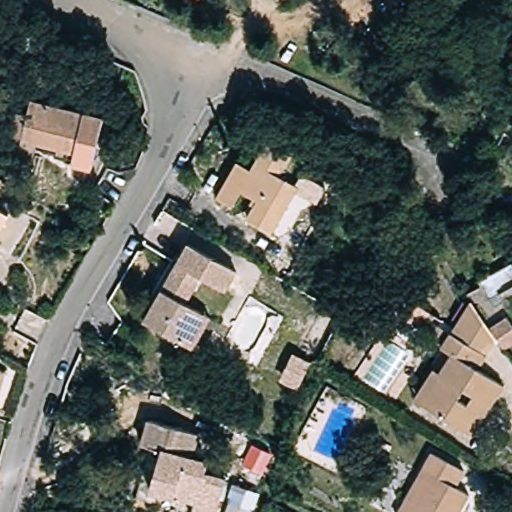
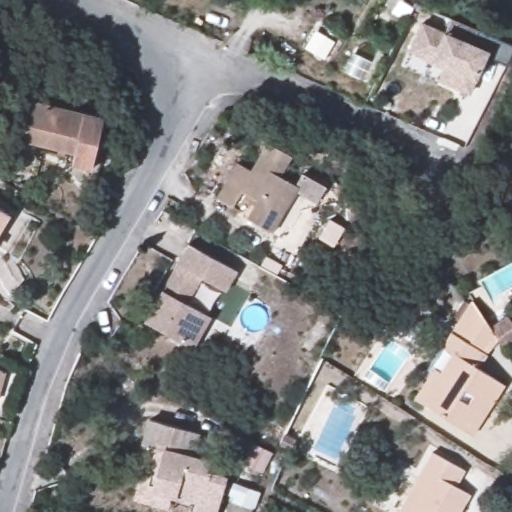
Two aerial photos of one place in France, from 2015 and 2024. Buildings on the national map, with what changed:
new [(476,46),(490,53),(477,81),(470,96),(438,81),(444,69),(431,64),(407,52),(421,23),(445,33),(450,19),(478,33),(476,46)]
unchanged [(65,166),(68,152),(17,140),(25,103),(97,119),(87,171),(65,166)]
unchanged [(247,218),(257,201),(241,191),(232,207),(217,198),(235,165),(249,172),(266,144),(291,159),(280,178),(297,189),(272,232),(247,218)]
unchanged [(7,215),(0,227),(0,211),(7,215)]
unchanged [(195,354),(185,349),(145,327),(188,248),(236,275),(224,299),(201,286),(187,310),(202,318),(212,324),(195,354)]
unchanged [(441,375),(453,355),(429,339),(438,325),(454,335),(474,301),(501,343),(486,355),(477,369),(504,386),(473,436),(423,404),(415,399),(432,370),(441,375)]
unchanged [(3,372),(0,383),(0,371),(3,372)]
unchanged [(152,453),(145,450),(151,425),(200,438),(193,462),(211,467),(208,478),(229,483),(220,512),(197,512),(199,507),(153,495),(164,456),(152,453)]
unchanged [(433,448),(464,466),(455,482),(470,490),(457,512),(398,512),(396,511),(433,448)]

